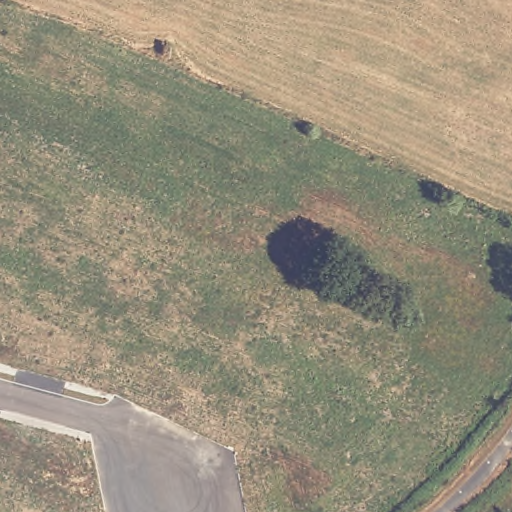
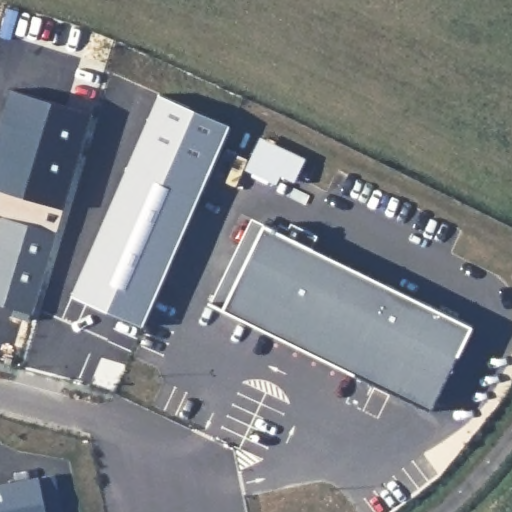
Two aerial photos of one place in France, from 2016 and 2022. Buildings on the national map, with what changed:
new [(10,90),(94,113),(34,316),(0,306),(0,125),(10,90)]
new [(159,94),(232,125),(145,328),(72,296),(159,94)]
new [(237,187),(215,176),(226,150),(249,160),(261,135),(307,157),(295,183),(281,175),(277,186),(245,170),(237,187)]
new [(252,217),(264,224),(283,234),(291,223),(317,236),(311,246),(474,326),(432,413),(209,302),(252,217)]
unchanged [(47,512),(0,512),(0,484),(39,476),(47,512)]

